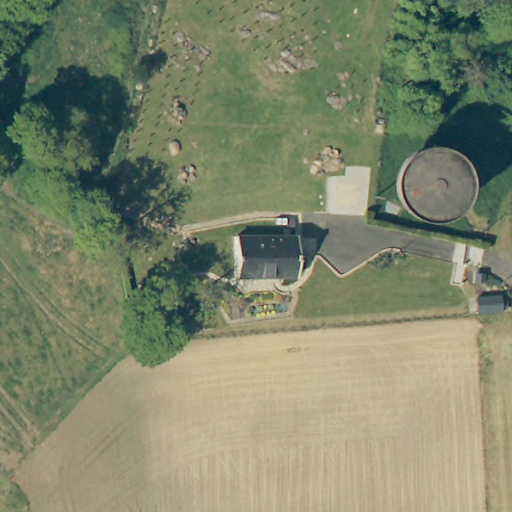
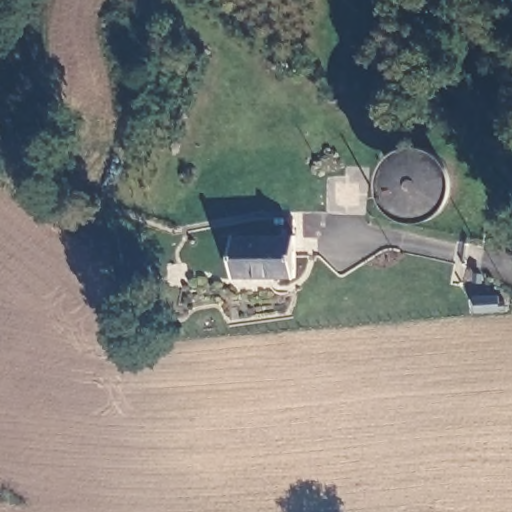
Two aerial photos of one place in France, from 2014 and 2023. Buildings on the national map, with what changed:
unchanged [(234,235),(295,235),(295,275),(234,275),(234,235)]

